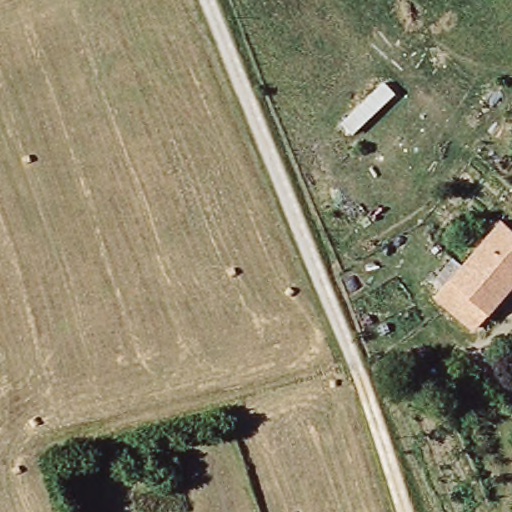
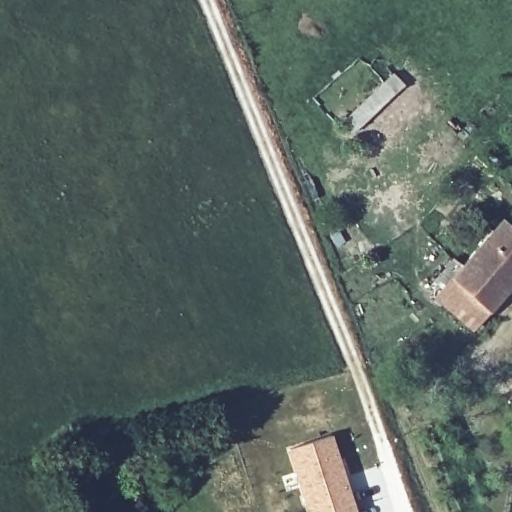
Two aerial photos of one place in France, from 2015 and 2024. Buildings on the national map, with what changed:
unchanged [(396,95),(352,135),(341,122),(383,82),(396,95)]
unchanged [(451,282),(501,227),(512,237),(512,285),(486,314),(451,282)]
unchanged [(451,282),(486,314),(472,330),(435,296),(441,289),(433,283),(452,259),(465,267),(451,282)]
new [(331,434),(357,512),(305,512),(285,449),(331,434)]

